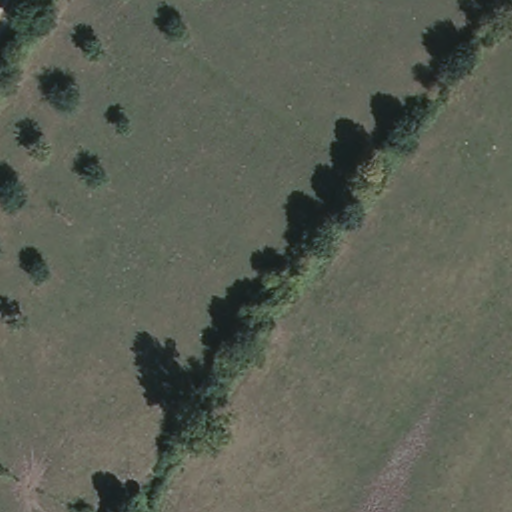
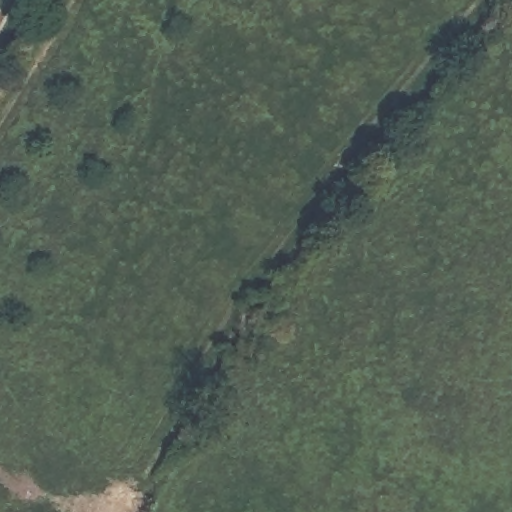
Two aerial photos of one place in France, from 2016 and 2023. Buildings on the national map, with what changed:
[]

